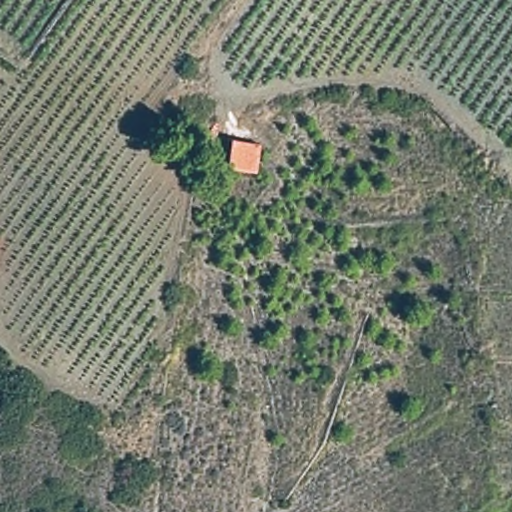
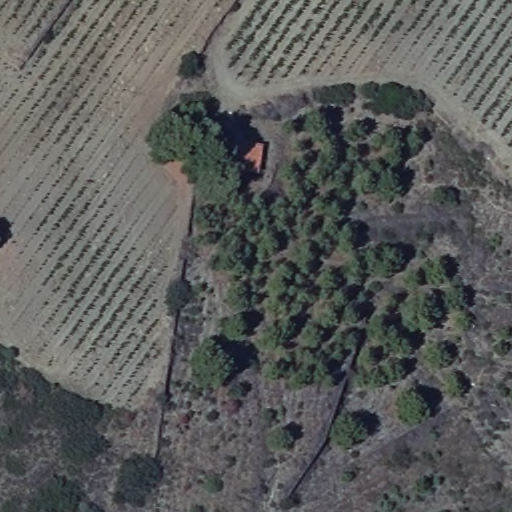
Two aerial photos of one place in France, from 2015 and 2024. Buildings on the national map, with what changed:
unchanged [(266,140),(261,173),(225,169),(230,136),(266,140)]

